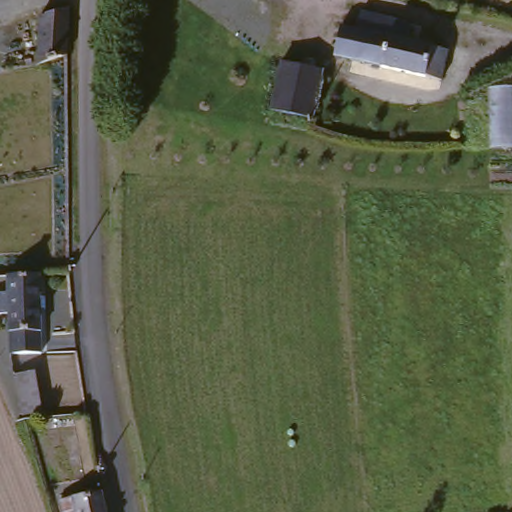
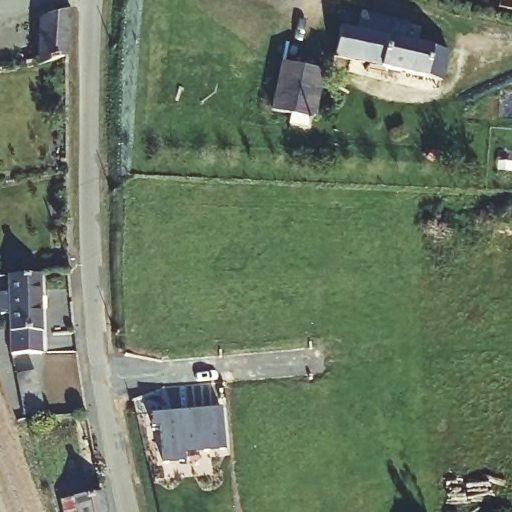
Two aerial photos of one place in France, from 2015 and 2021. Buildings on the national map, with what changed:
unchanged [(64,51),(36,62),(38,12),(68,3),(64,51)]
unchanged [(404,35),(446,43),(439,74),(345,52),(331,51),(339,18),(353,20),(357,5),(409,15),(404,35)]
unchanged [(273,106),(279,79),(282,60),(285,61),(312,67),(322,69),(314,116),(273,106)]
unchanged [(39,268),(42,345),(13,345),(11,269),(39,268)]
unchanged [(21,392),(19,382),(17,373),(17,372),(36,369),(44,407),(27,412),(21,392)]
new [(219,407),(223,448),(182,452),(182,461),(161,462),(158,425),(150,426),(149,413),(219,407)]
unchanged [(100,490),(104,512),(66,512),(64,497),(100,490)]

